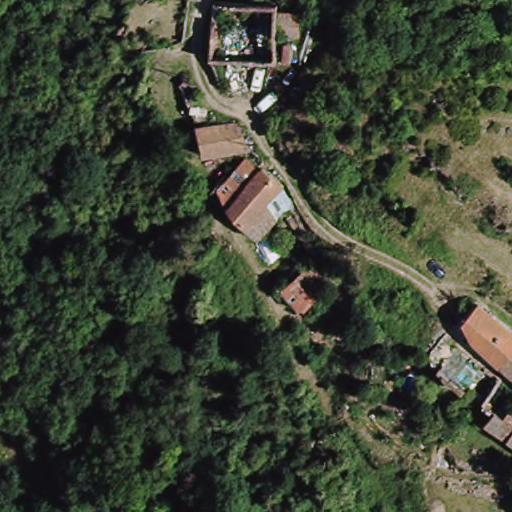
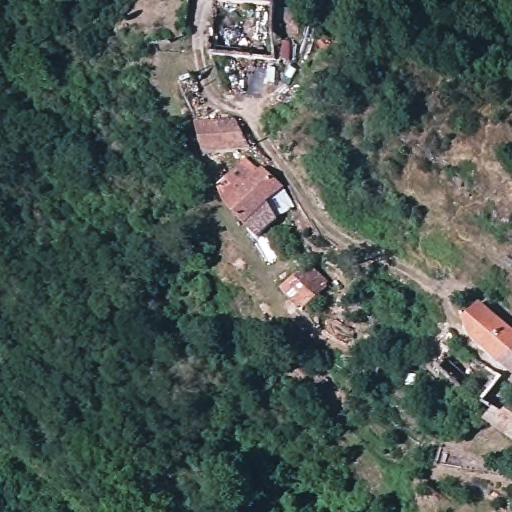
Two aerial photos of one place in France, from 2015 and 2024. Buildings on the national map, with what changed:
unchanged [(235,116),(240,129),(245,147),(236,149),(237,157),(231,158),(227,163),(219,165),(218,157),(208,158),(200,128),(222,120),(235,116)]
unchanged [(291,205),(278,219),(259,241),(235,226),(232,216),(216,197),(221,185),(239,161),(252,171),(257,165),(280,183),(284,187),(291,205)]
unchanged [(330,285),(308,303),(300,314),(285,288),(289,284),(284,276),(286,270),(290,267),(295,264),(301,267),(304,271),(313,262),(330,285)]
unchanged [(497,354),(492,349),(477,335),(467,321),(481,304),(509,329),(512,333),(512,368),(506,362),(497,354)]
unchanged [(496,423),(502,416),(512,404),(512,435),(496,423)]

